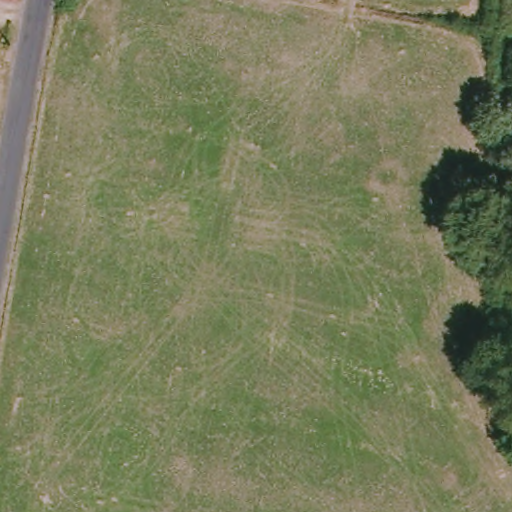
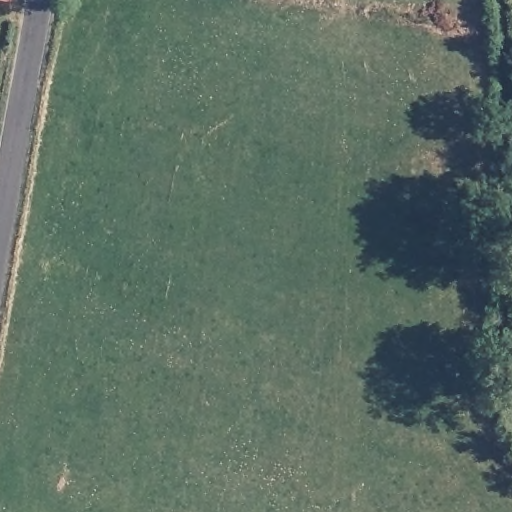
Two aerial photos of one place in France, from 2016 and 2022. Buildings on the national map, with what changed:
unchanged [(16,0),(15,8),(0,6),(0,0),(16,0)]

